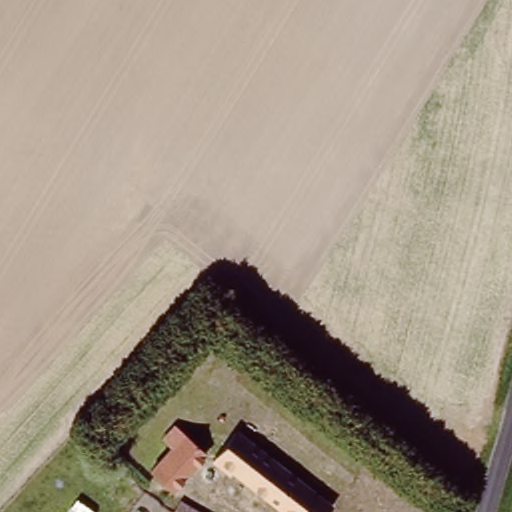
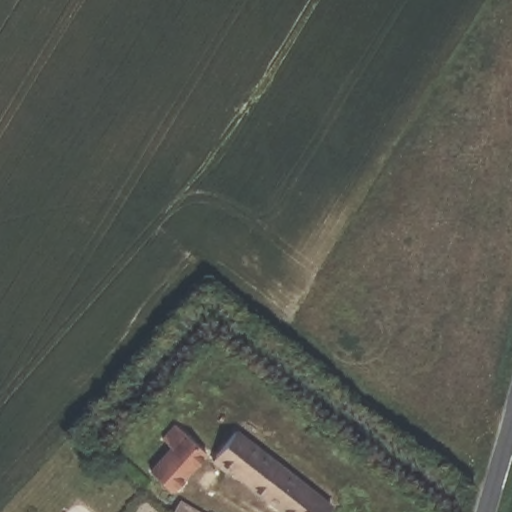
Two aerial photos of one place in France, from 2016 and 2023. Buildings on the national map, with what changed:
unchanged [(295,512),(216,447),(225,436),(217,430),(228,417),(331,502),(323,512),(295,512)]
unchanged [(173,487),(149,464),(174,438),(166,430),(178,419),(210,449),(173,487)]
unchanged [(211,510),(210,512),(183,512),(173,507),(179,495),(211,510)]

